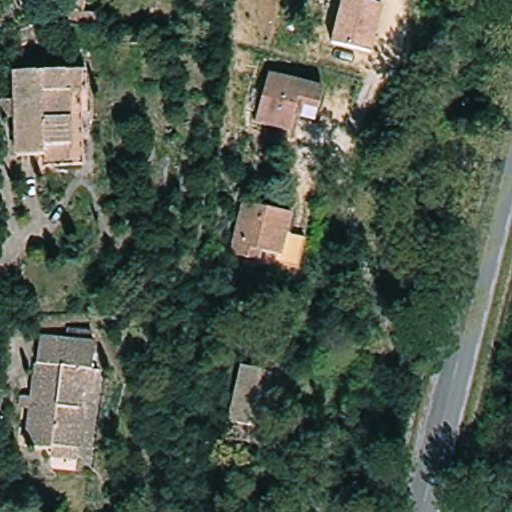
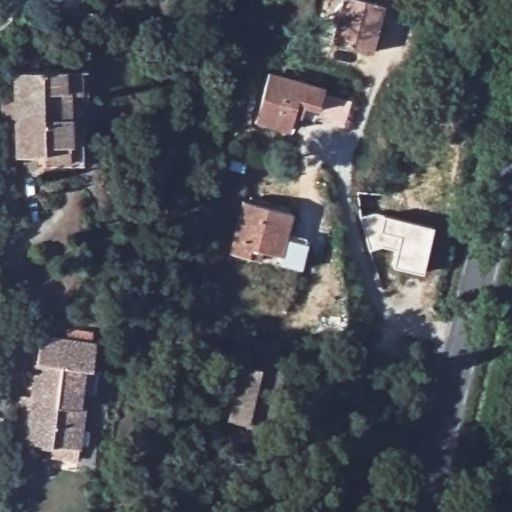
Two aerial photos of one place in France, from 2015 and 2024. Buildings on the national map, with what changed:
unchanged [(343,0),(385,0),(372,47),(333,35),(343,0)]
unchanged [(85,64),(87,87),(81,87),(85,160),(46,163),(45,152),(19,153),(17,117),(2,118),(0,101),(16,99),(14,68),(85,64)]
unchanged [(325,85),(318,116),(296,111),(292,127),(258,119),(270,71),(325,85)]
unchanged [(250,257),(234,253),(246,204),(291,215),(287,233),(308,238),(299,270),(279,264),(281,255),(263,250),(261,260),(250,257)]
new [(373,213),(383,215),(433,226),(422,272),(392,266),(397,249),(382,246),(370,251),(360,217),(373,213)]
unchanged [(54,455),(55,449),(30,445),(35,408),(22,406),(24,394),(37,395),(44,336),(102,343),(99,369),(97,368),(94,390),(82,389),(80,407),(86,408),(80,448),(79,459),(54,455)]
unchanged [(269,442),(230,432),(249,345),(289,354),(282,386),(278,404),(269,442)]

